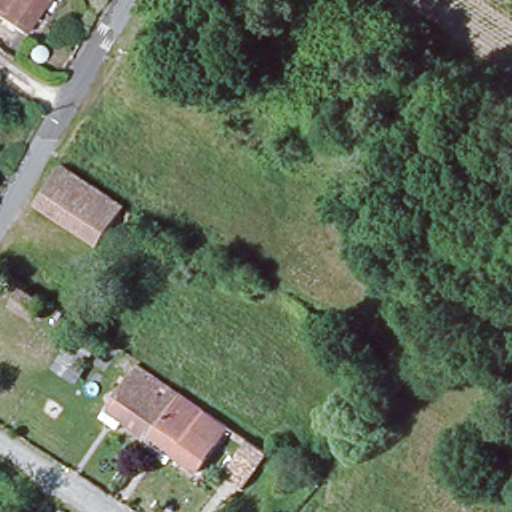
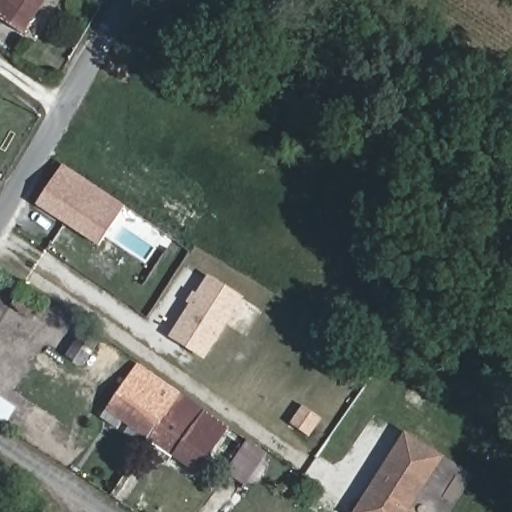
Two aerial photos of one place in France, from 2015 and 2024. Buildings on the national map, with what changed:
unchanged [(25,35),(0,18),(0,0),(47,0),(25,35)]
unchanged [(79,233),(36,204),(59,167),(100,195),(79,233)]
unchanged [(98,245),(79,233),(100,195),(122,210),(98,245)]
new [(205,360),(168,336),(206,275),(243,298),(205,360)]
unchanged [(43,301),(30,322),(9,308),(22,288),(43,301)]
unchanged [(104,410),(133,367),(176,396),(147,440),(104,410)]
unchanged [(176,396),(201,413),(171,457),(147,440),(176,396)]
unchanged [(201,413),(226,430),(194,474),(171,457),(201,413)]
new [(445,456),(410,512),(353,512),(404,431),(445,456)]
unchanged [(243,486),(221,473),(241,439),(265,455),(243,486)]

